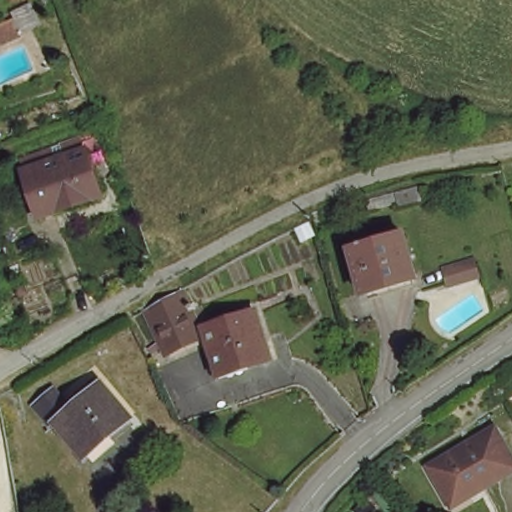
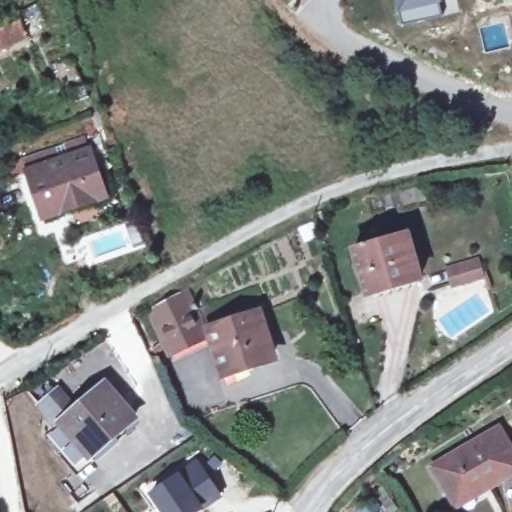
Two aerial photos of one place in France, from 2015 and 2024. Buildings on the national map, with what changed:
new [(417,21),(402,25),(398,25),(392,0),(435,0),(439,16),(417,21)]
unchanged [(33,40),(0,53),(0,32),(26,22),(33,40)]
demolished [(458,115),(469,124),(459,136),(447,127),(458,115)]
unchanged [(28,173),(90,150),(104,192),(43,216),(28,173)]
unchanged [(406,228),(422,275),(371,294),(354,246),(406,228)]
unchanged [(442,262),(474,252),(478,266),(447,276),(442,262)]
unchanged [(168,298),(181,290),(201,335),(165,350),(146,310),(168,298)]
unchanged [(269,356),(245,365),(243,362),(221,370),(206,332),(254,315),(269,356)]
unchanged [(68,406),(97,378),(131,410),(90,451),(58,421),(51,427),(33,410),(52,390),(68,406)]
unchanged [(446,500),(427,467),(491,428),(512,464),(512,472),(484,488),(450,507),(446,500)]
new [(218,496),(194,512),(162,512),(150,493),(196,463),(218,496)]

